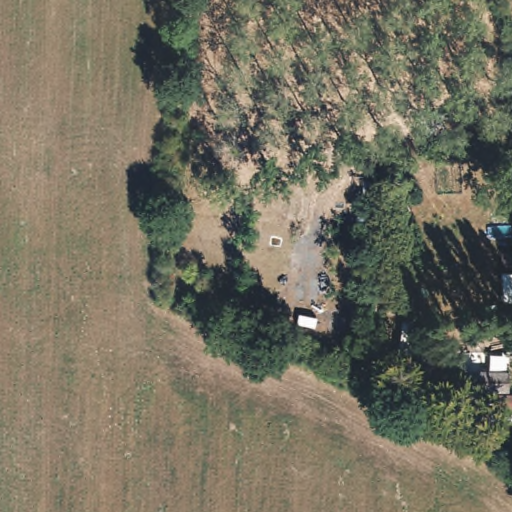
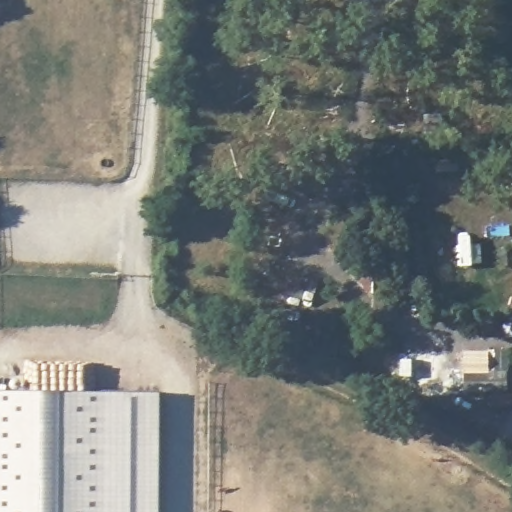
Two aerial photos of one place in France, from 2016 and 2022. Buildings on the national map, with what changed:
unchanged [(510,373),(510,392),(465,391),(465,372),(510,373)]
new [(160,392),(158,512),(0,512),(0,391),(160,392)]

